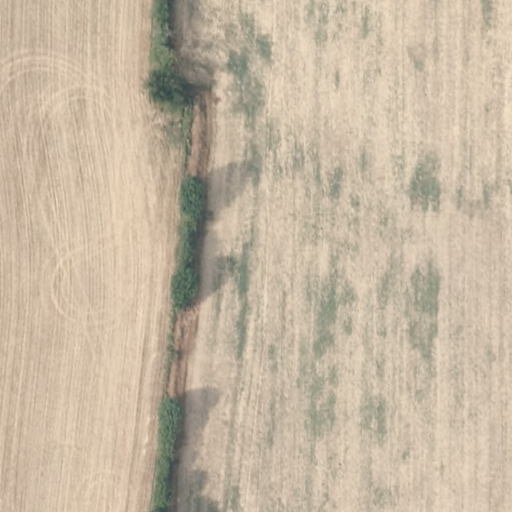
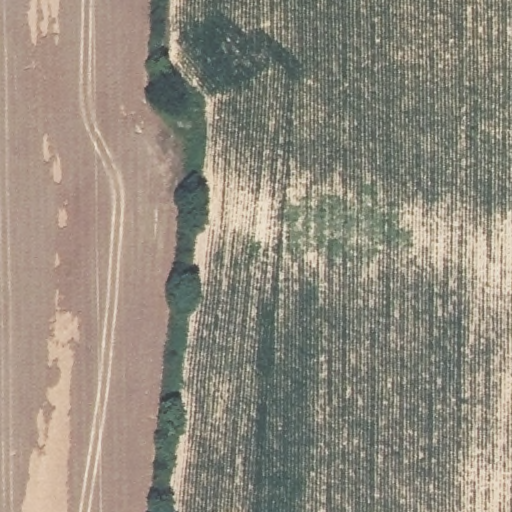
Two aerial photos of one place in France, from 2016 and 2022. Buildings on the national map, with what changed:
[]

